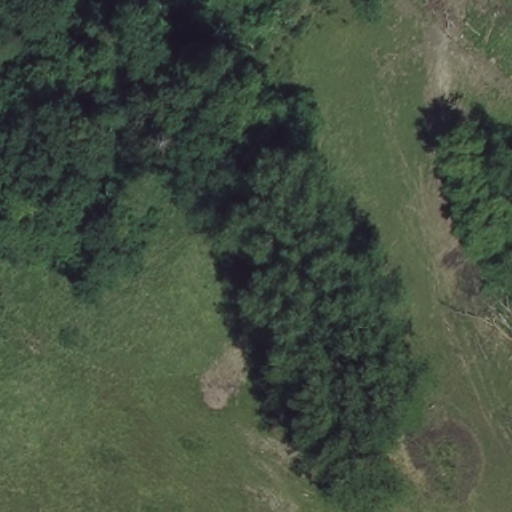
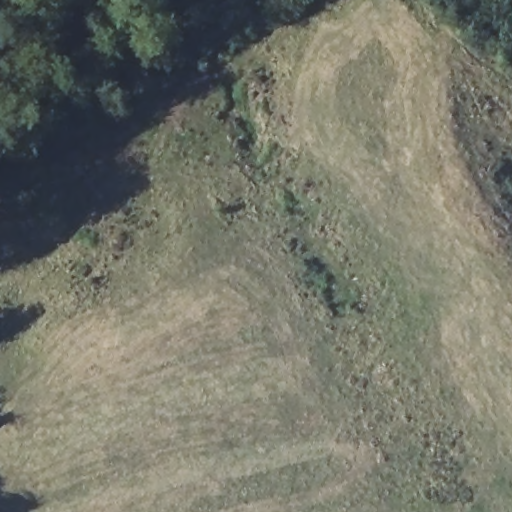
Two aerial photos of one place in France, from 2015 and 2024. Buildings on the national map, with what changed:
[]

